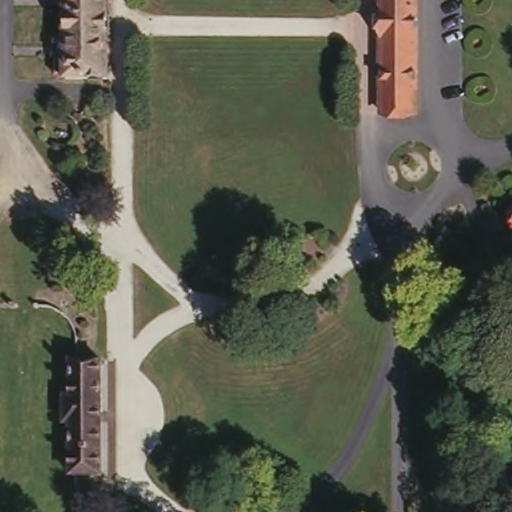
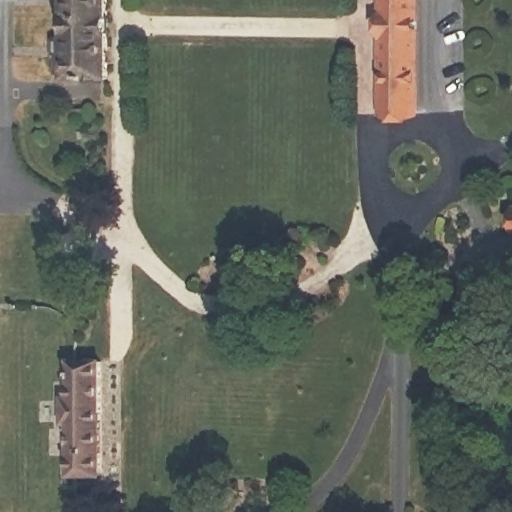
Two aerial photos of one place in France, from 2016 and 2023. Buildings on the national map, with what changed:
unchanged [(70,80),(69,3),(60,3),(60,0),(112,0),(112,79),(70,80)]
unchanged [(382,110),(381,0),(414,0),(415,112),(382,110)]
unchanged [(104,362),(104,478),(76,478),(77,455),(67,454),(67,444),(76,444),(76,419),(68,419),(68,393),(78,393),(77,361),(104,362)]

